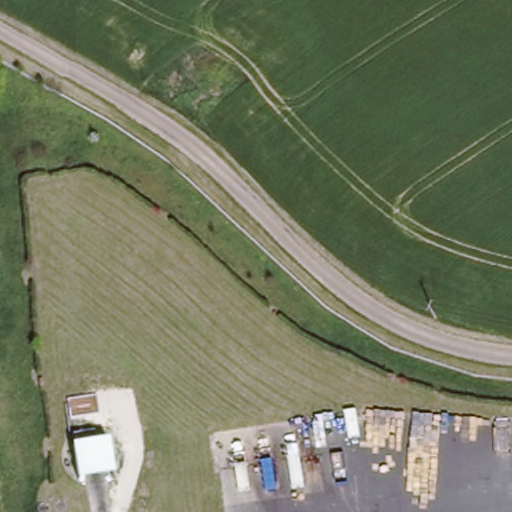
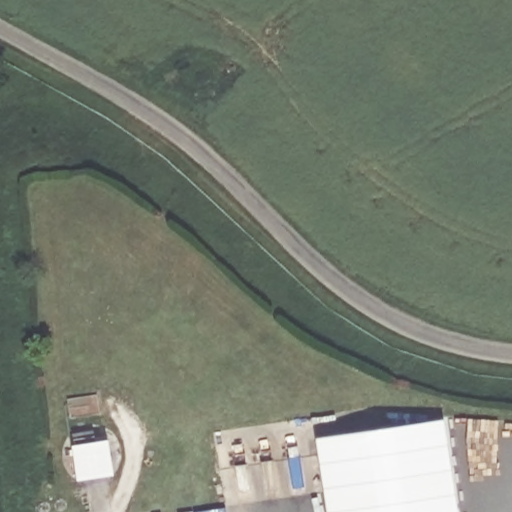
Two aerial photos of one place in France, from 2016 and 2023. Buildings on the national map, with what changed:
new [(445,419),(459,512),(328,512),(318,438),(445,419)]
unchanged [(71,474),(68,448),(75,447),(73,432),(100,431),(101,443),(121,440),(123,464),(71,474)]

